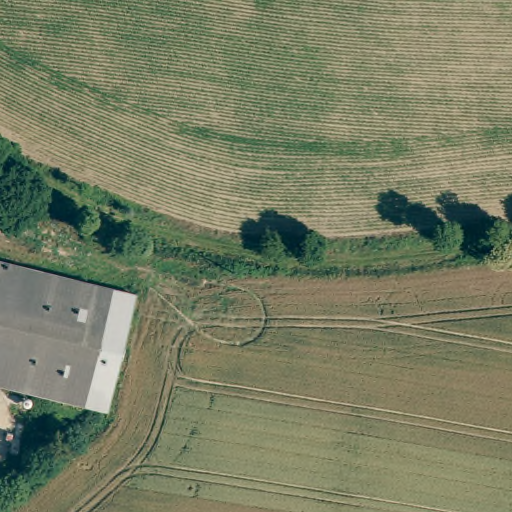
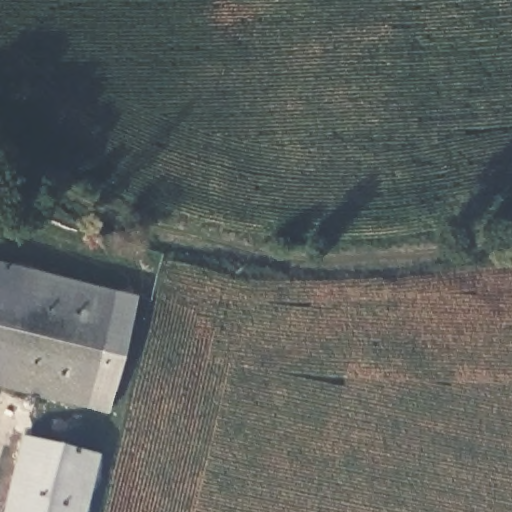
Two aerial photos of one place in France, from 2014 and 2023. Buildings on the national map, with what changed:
unchanged [(110,412),(0,385),(0,262),(142,296),(110,412)]
new [(2,512),(20,436),(102,455),(87,512),(2,512)]

